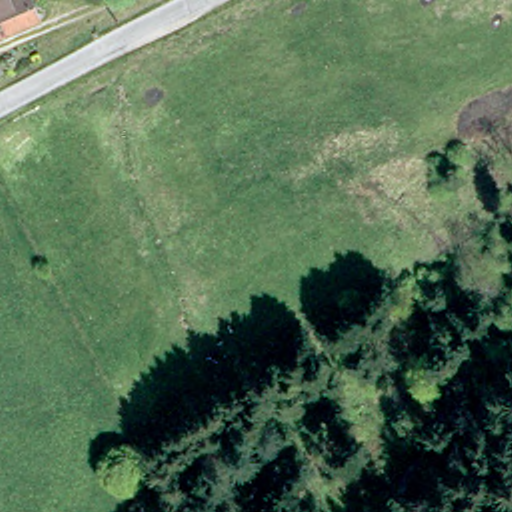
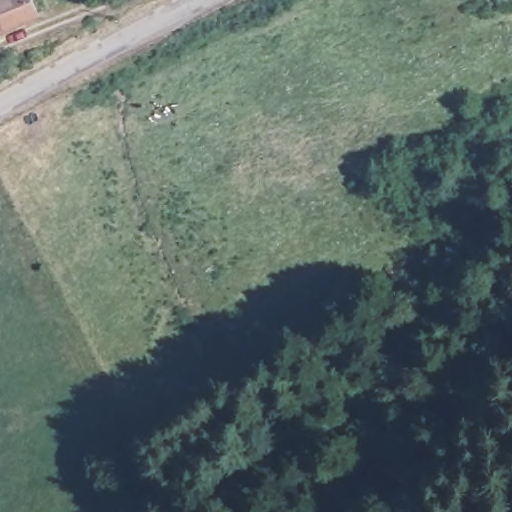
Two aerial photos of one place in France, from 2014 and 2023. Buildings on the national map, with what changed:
unchanged [(0,32),(0,0),(29,0),(38,14),(0,32)]

